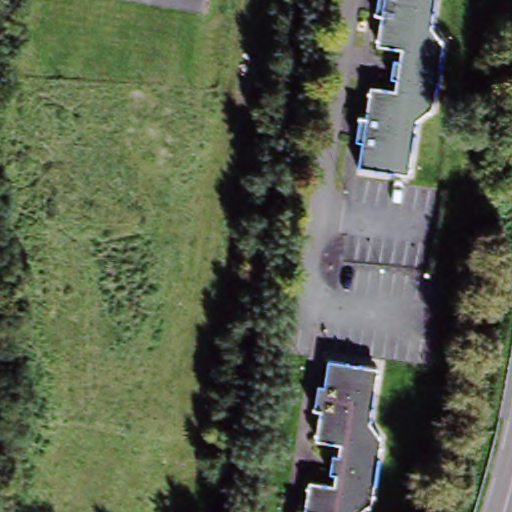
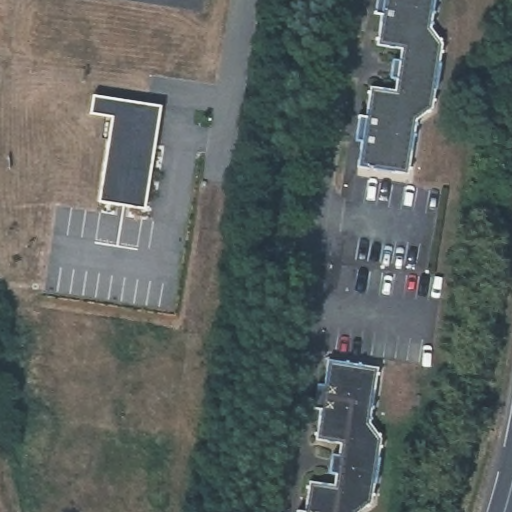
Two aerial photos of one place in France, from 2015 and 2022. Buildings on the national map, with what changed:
unchanged [(353,121),(353,120),(353,119),(361,120),(362,107),(364,97),(362,97),(363,94),(365,94),(366,90),(366,89),(384,92),(391,93),(392,82),(388,82),(386,81),(388,68),(389,62),(395,63),(396,60),(397,52),(390,51),(386,50),(372,48),(373,42),(372,42),(372,40),(373,40),(377,17),(370,16),(371,14),(372,14),(372,10),(374,0),(432,0),(430,14),(432,14),(431,17),(430,17),(428,25),(430,25),(430,27),(428,27),(427,31),(436,42),(437,41),(438,43),(437,44),(439,47),(438,54),(440,54),(439,56),(437,56),(436,66),(437,66),(437,71),(435,71),(432,87),(434,87),(433,92),(432,92),(430,102),(432,102),(431,105),(430,105),(428,112),(426,114),(427,115),(425,116),(423,115),(412,124),(412,127),(413,127),(413,129),(412,129),(410,137),(412,137),(411,140),(410,140),(405,171),(406,172),(406,174),(404,174),(403,179),(385,176),(385,177),(382,177),(382,176),(373,174),(372,176),(370,175),(371,174),(352,171),(353,166),(356,146),(357,145),(350,144),(354,121),(353,121)]
new [(163,130),(116,122),(116,124),(94,121),(97,102),(166,112),(163,130)]
new [(116,122),(163,130),(150,217),(102,210),(115,125),(116,122)]
unchanged [(302,490),(303,487),(305,487),(306,482),(330,487),(332,475),(326,474),(329,455),(335,456),(337,445),(312,441),(313,436),(312,436),(312,433),(313,433),(317,411),(310,409),(310,407),(311,407),(315,385),(321,386),(326,360),(343,362),(343,361),(346,362),(346,363),(356,365),(356,363),(358,363),(358,365),(377,368),(376,373),(377,373),(377,376),(375,376),(370,407),(372,407),(371,410),(370,410),(368,418),(370,418),(370,421),(368,421),(367,424),(376,435),(377,435),(378,437),(377,437),(379,440),(377,447),(380,447),(379,450),(377,449),(376,459),(377,459),(377,464),(375,464),(372,481),(374,481),(373,486),(372,486),(370,495),(372,496),(371,498),(370,497),(368,505),(366,507),(367,507),(365,509),(364,508),(358,512),(301,512),(304,490),(302,490)]

